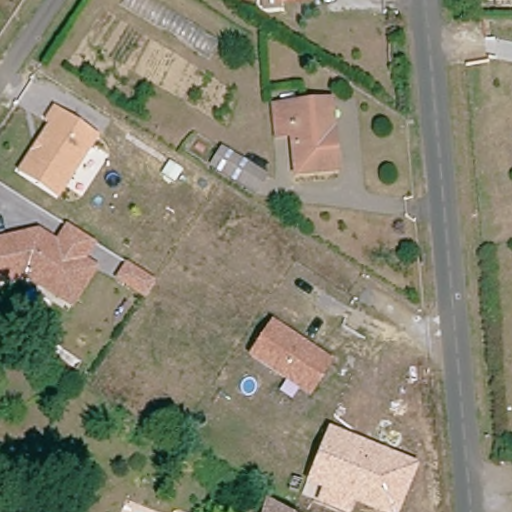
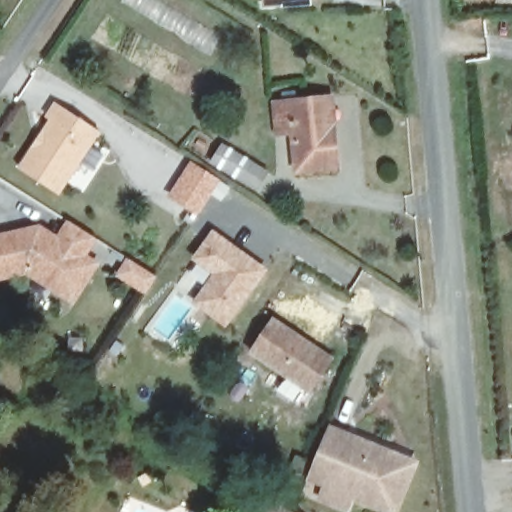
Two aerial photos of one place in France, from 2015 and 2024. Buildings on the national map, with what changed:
unchanged [(56,102),(100,130),(59,193),(21,169),(52,120),(47,117),(56,102)]
unchanged [(298,135),(282,136),(280,106),(327,103),(338,103),(340,132),(342,171),(300,173),(298,135)]
unchanged [(224,145),(270,176),(258,194),(212,166),(224,145)]
new [(221,179),(199,216),(167,198),(191,160),(221,179)]
unchanged [(66,300),(57,294),(19,271),(0,278),(0,236),(21,228),(35,238),(39,232),(51,239),(62,221),(84,234),(87,236),(76,255),(89,263),(66,300)]
new [(267,269),(227,329),(193,303),(214,274),(192,261),(213,230),(267,269)]
unchanged [(157,278),(161,281),(152,296),(124,280),(134,264),(157,278)]
unchanged [(273,320),(333,359),(312,391),(252,352),(273,320)]
unchanged [(306,481),(329,425),(419,461),(399,512),(385,512),(356,500),(350,512),(346,512),(342,510),(318,499),(322,487),(306,481)]
unchanged [(268,503),(281,512),(265,512),(268,503)]

